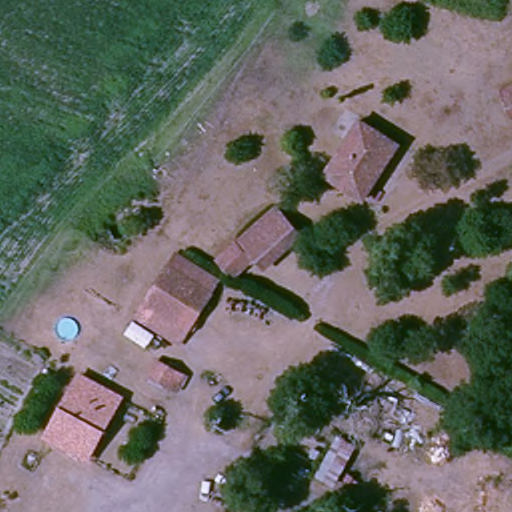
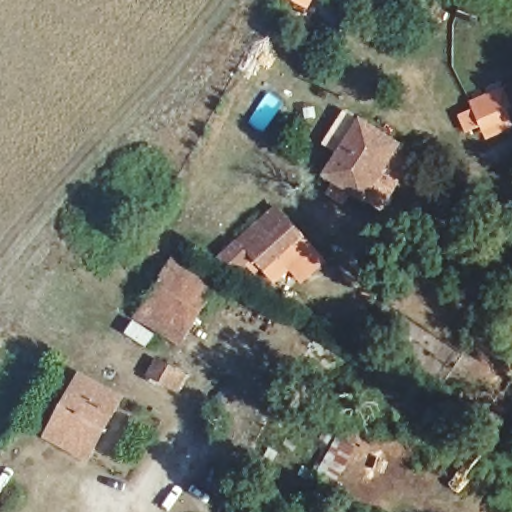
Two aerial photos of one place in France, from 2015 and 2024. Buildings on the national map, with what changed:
new [(291,0),(293,0),(292,1),(291,0)]
new [(306,0),(313,0),(312,3),(306,0)]
demolished [(512,120),(490,129),(477,97),(512,81),(512,120)]
new [(469,102),(512,84),(512,116),(484,130),(482,126),(465,134),(457,116),(473,109),(469,102)]
unchanged [(361,118),(402,141),(370,208),(326,182),(361,118)]
unchanged [(273,205),(301,239),(261,270),(255,262),(234,278),(213,263),(273,205)]
unchanged [(164,266),(207,284),(182,336),(143,320),(164,266)]
unchanged [(184,362),(181,391),(159,385),(152,383),(159,355),(173,358),(184,362)]
unchanged [(73,376),(121,393),(96,460),(75,454),(47,445),(55,423),(73,376)]

